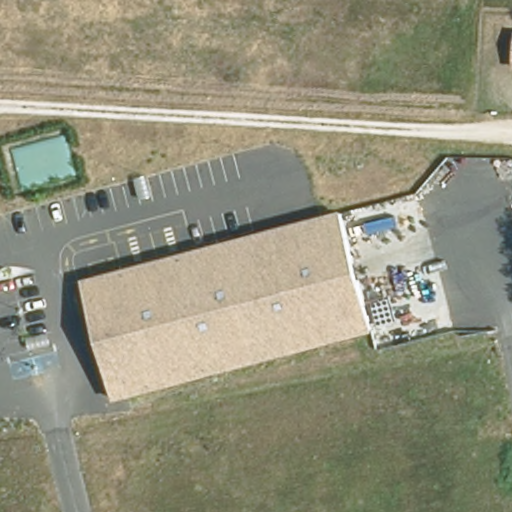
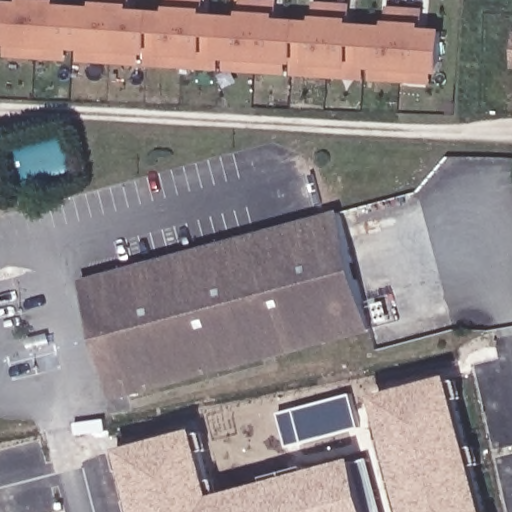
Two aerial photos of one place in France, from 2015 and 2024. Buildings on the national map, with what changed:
new [(21,0),(53,0),(52,8),(95,10),(95,0),(126,0),(125,12),(167,15),(168,0),(199,0),(198,17),(240,20),(242,0),(272,2),(271,22),(313,24),(315,5),(345,7),(345,27),(386,29),(387,10),(418,12),(417,31),(439,32),(436,71),(0,42),(0,4),(21,5),(21,0)]
unchanged [(115,402),(81,280),(342,210),(375,331),(115,402)]
new [(453,375),(489,512),(405,512),(375,395),(453,375)]
new [(287,447),(278,413),(352,394),(360,428),(287,447)]
new [(216,496),(359,458),(373,512),(137,512),(120,449),(198,429),(216,496)]

